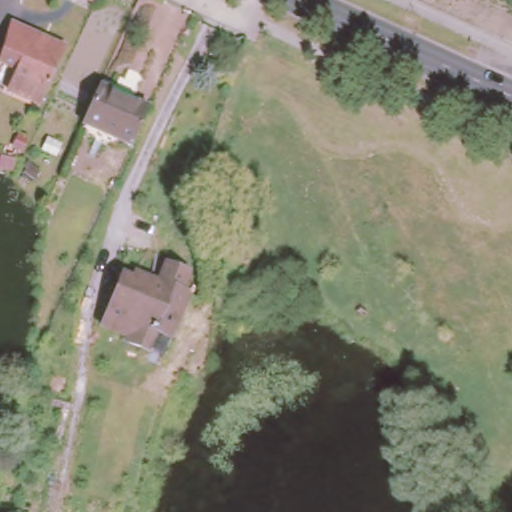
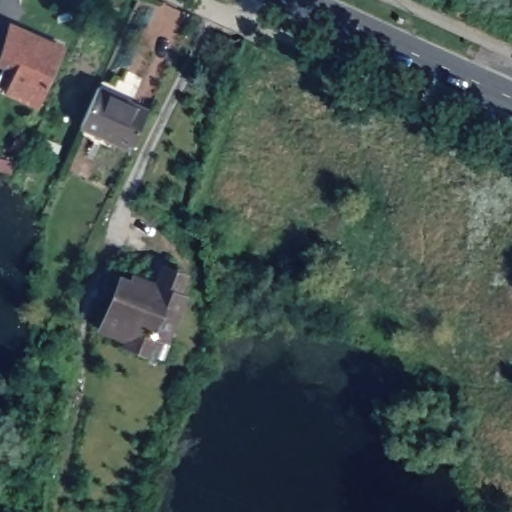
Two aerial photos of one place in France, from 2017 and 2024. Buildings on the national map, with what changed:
unchanged [(45,96),(8,80),(14,62),(0,56),(0,49),(10,19),(66,43),(45,96)]
unchanged [(97,81),(148,106),(129,146),(80,125),(97,81)]
unchanged [(139,347),(118,337),(118,332),(93,318),(115,272),(126,276),(130,268),(152,278),(161,260),(183,273),(175,289),(183,294),(189,296),(167,339),(159,357),(139,347)]
unchanged [(8,478),(4,500),(24,507),(22,512),(2,512),(0,512),(0,475),(8,478)]

